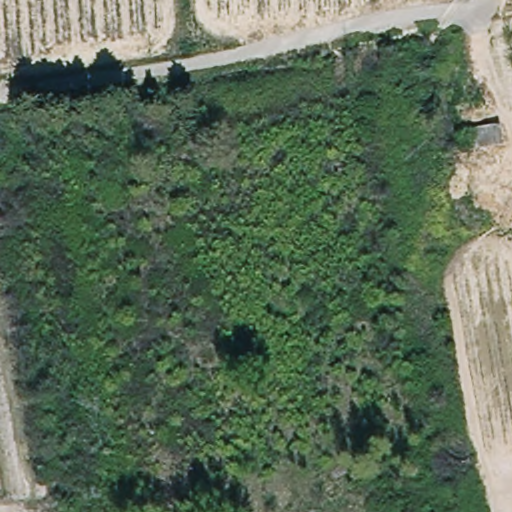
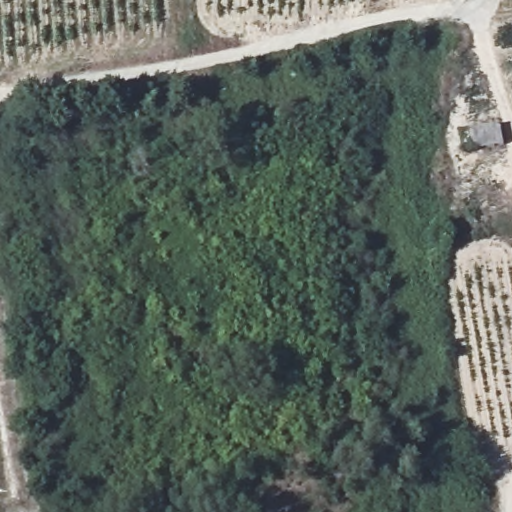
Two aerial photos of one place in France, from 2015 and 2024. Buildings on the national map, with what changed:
unchanged [(460,136),(496,128),(500,146),(464,155),(460,136)]

